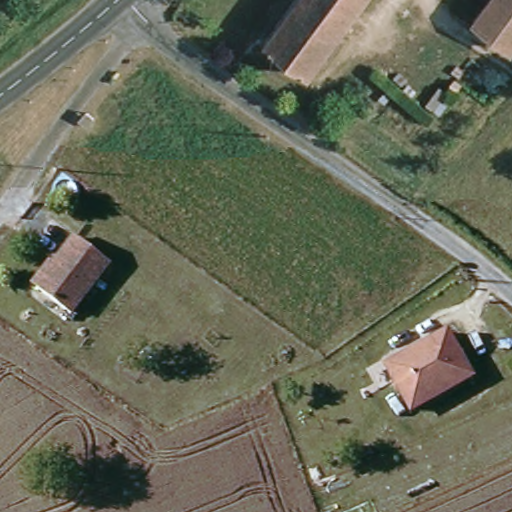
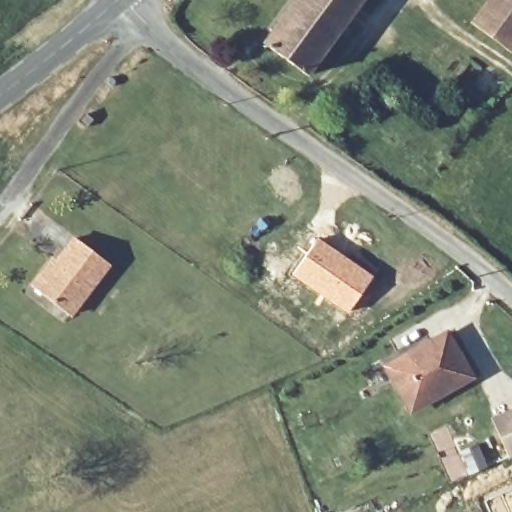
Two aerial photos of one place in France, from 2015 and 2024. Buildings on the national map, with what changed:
unchanged [(260,51),(298,0),(362,0),(301,81),(260,51)]
unchanged [(471,20),(487,0),(512,0),(512,42),(507,49),(471,20)]
new [(317,237),(374,276),(347,314),(290,274),(317,237)]
unchanged [(48,274),(74,239),(107,265),(68,314),(36,289),(48,274)]
unchanged [(386,366),(448,334),(471,378),(408,410),(386,366)]
unchanged [(508,458),(491,417),(512,408),(512,456),(508,458)]

